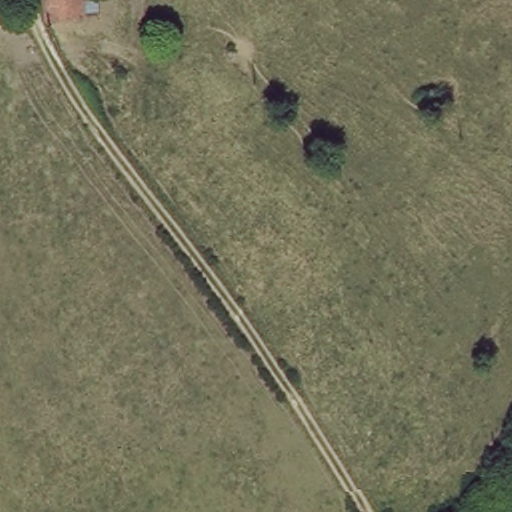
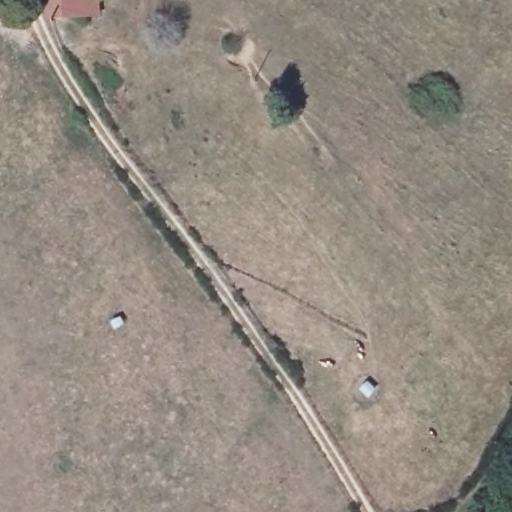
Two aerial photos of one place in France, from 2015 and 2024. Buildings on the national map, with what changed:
unchanged [(86,0),(87,13),(50,19),(48,0),(86,0)]

